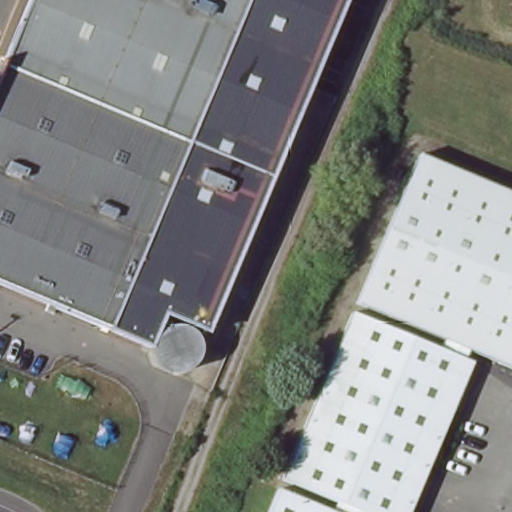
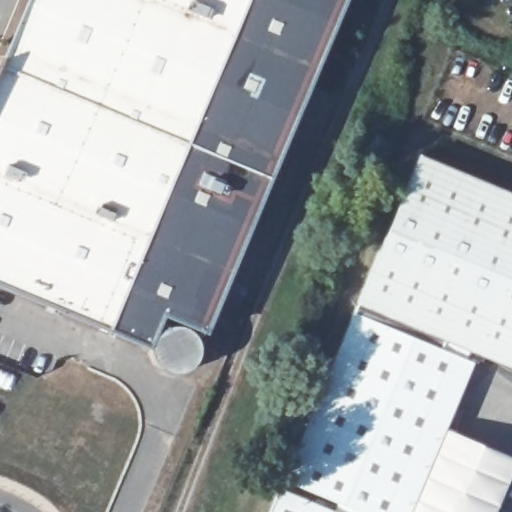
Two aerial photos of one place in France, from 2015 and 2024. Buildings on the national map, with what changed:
unchanged [(0,67),(28,0),(242,0),(108,326),(0,279),(0,67)]
unchanged [(206,329),(164,313),(150,344),(108,326),(242,0),(344,0),(206,329)]
unchanged [(466,346),(462,355),(471,359),(408,512),(362,512),(282,478),(349,310),(439,345),(442,336),(353,301),(359,287),(413,152),(512,191),(512,364),(466,346)]
new [(512,456),(512,476),(497,512),(408,512),(443,427),(512,456)]
unchanged [(347,512),(269,512),(279,485),(347,512)]

